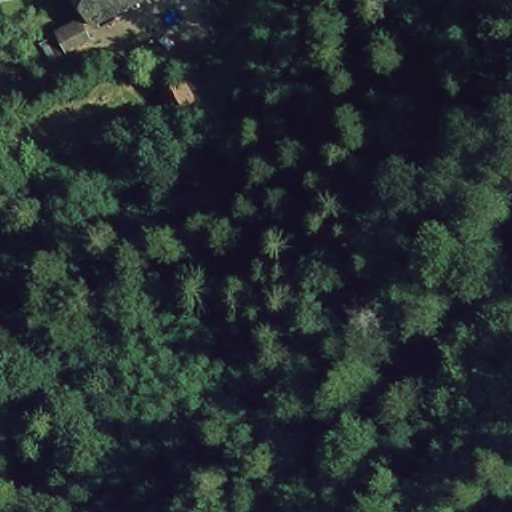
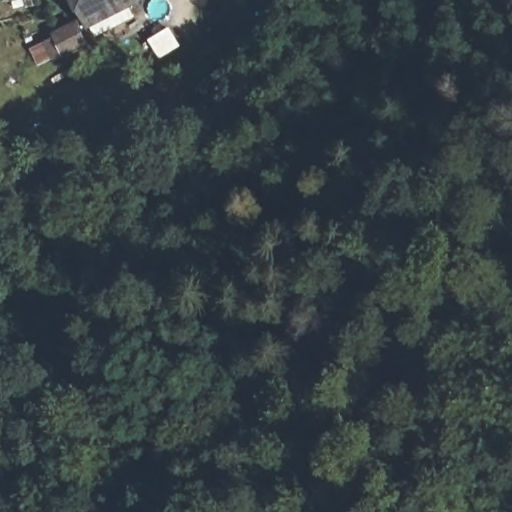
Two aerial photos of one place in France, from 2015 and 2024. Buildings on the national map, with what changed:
unchanged [(61,50),(51,23),(69,2),(67,0),(152,0),(61,50)]
unchanged [(195,108),(161,124),(151,86),(180,70),(195,108)]

